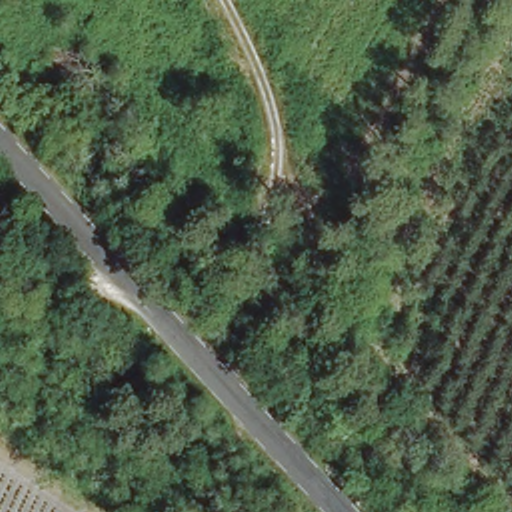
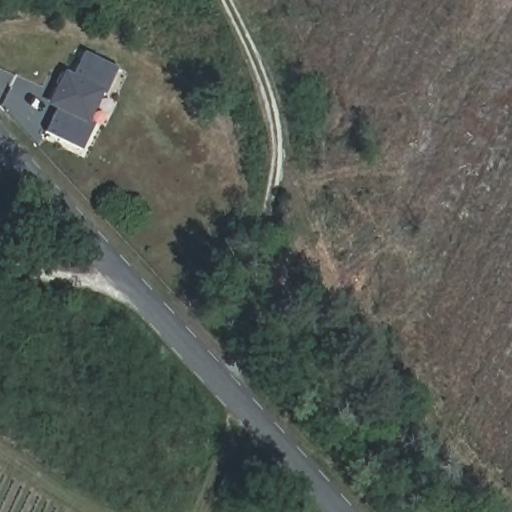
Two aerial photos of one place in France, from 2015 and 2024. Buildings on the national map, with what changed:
demolished [(79,57),(74,84),(41,77),(46,51),(79,57)]
new [(44,135),(56,109),(50,106),(64,76),(70,80),(83,54),(116,70),(104,96),(99,94),(85,122),(93,126),(80,153),(44,135)]
new [(54,85),(59,76),(63,78),(59,87),(54,85)]
demolished [(111,95),(100,121),(90,117),(102,90),(111,95)]

